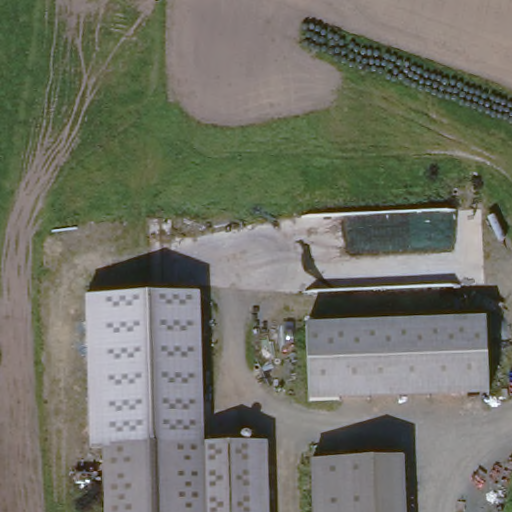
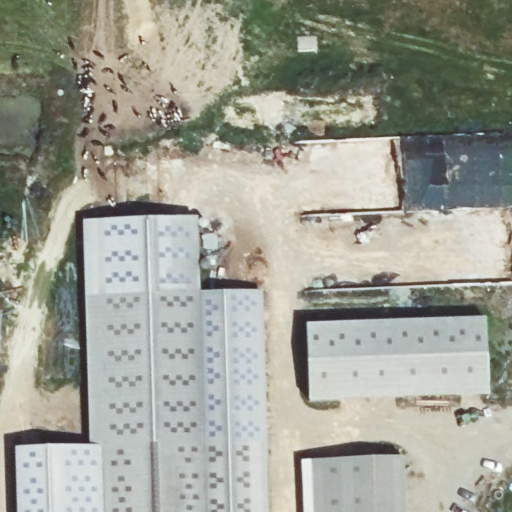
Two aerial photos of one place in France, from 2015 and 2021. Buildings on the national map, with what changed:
new [(81,223),(196,217),(199,293),(84,297),(81,223)]
new [(250,445),(203,447),(199,293),(263,292),(269,512),(252,512),(250,445)]
unchanged [(198,447),(183,447),(100,451),(90,451),(84,297),(199,293),(203,447),(198,447)]
unchanged [(363,322),(484,318),(486,394),(306,398),(306,391),(304,323),(363,322)]
unchanged [(101,475),(100,451),(183,447),(198,447),(250,445),(252,512),(102,512),(101,475)]
new [(14,452),(90,451),(100,451),(101,475),(102,512),(17,512),(14,452)]
new [(309,462),(402,458),(404,512),(312,512),(309,462)]

